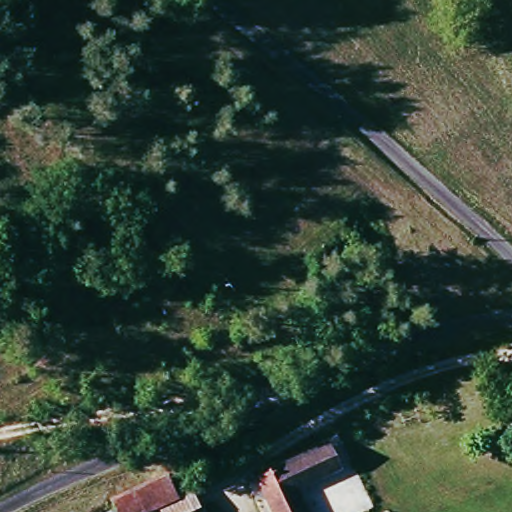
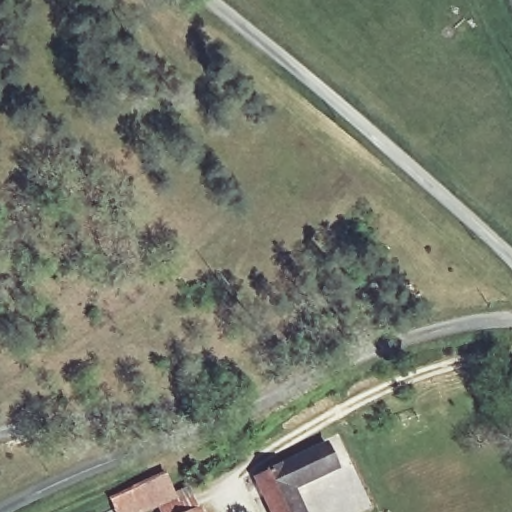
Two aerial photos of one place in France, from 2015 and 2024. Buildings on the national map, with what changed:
unchanged [(302,512),(270,512),(254,480),(323,446),(335,470),(291,491),(302,512)]
unchanged [(167,471),(176,495),(190,490),(199,512),(157,512),(156,510),(151,512),(106,512),(116,506),(112,498),(167,471)]
unchanged [(207,474),(210,483),(196,486),(193,477),(207,474)]

